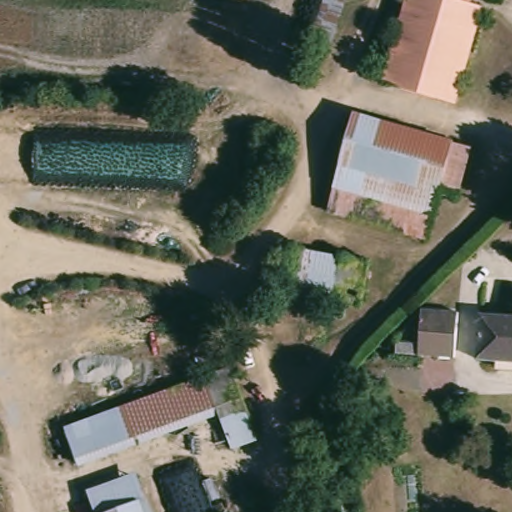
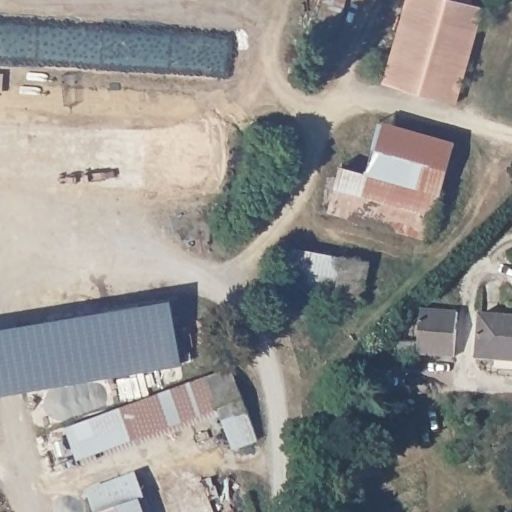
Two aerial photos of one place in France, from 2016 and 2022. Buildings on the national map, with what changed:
unchanged [(333,44),(312,37),(326,0),(348,0),(333,44)]
unchanged [(466,4),(478,8),(452,104),(380,84),(404,0),(468,0),(466,4)]
unchanged [(427,137),(415,183),(380,173),(340,163),(352,116),(427,137)]
unchanged [(380,173),(415,183),(427,137),(446,142),(468,148),(455,198),(437,193),(424,237),(327,208),(340,163),(380,173)]
unchanged [(306,251),(307,249),(338,255),(330,303),(282,294),(289,248),(306,251)]
unchanged [(366,260),(357,307),(330,303),(338,255),(366,260)]
new [(0,326),(170,297),(181,364),(0,394),(0,326)]
unchanged [(460,311),(455,359),(396,354),(397,341),(420,343),(422,308),(460,311)]
unchanged [(512,319),(512,371),(496,369),(496,363),(480,361),(482,317),(512,319)]
unchanged [(254,444),(227,453),(212,414),(73,465),(62,432),(227,371),(254,444)]
unchanged [(142,512),(93,512),(87,496),(130,479),(142,512)]

